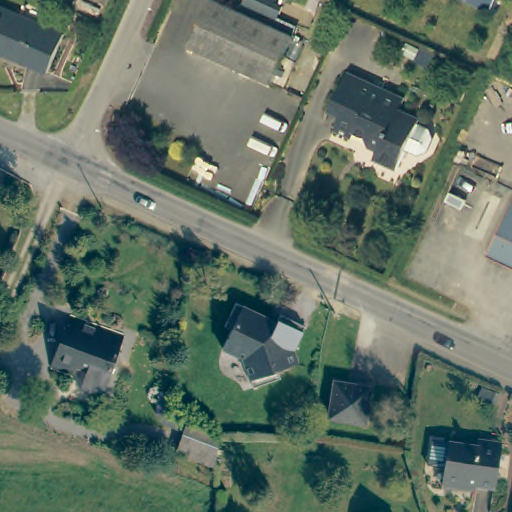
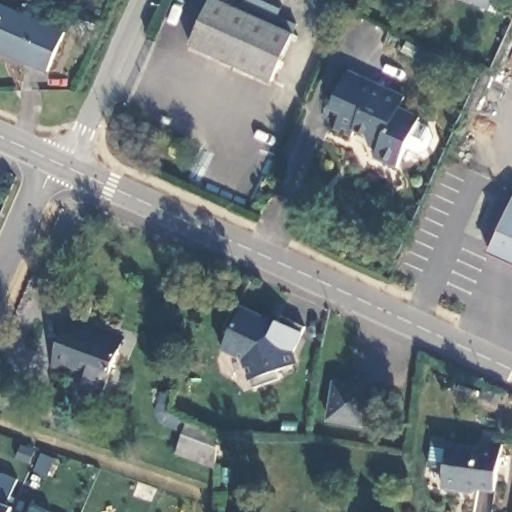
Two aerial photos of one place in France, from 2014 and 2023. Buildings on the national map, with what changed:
unchanged [(293,34),(272,82),(189,45),(209,0),(218,0),(293,34)]
unchanged [(471,1),(469,0),(472,0),(471,1)]
unchanged [(48,66),(0,47),(0,4),(63,28),(48,66)]
unchanged [(379,157),(382,150),(378,138),(360,130),(356,137),(339,129),(347,111),(337,106),(353,71),(410,97),(404,108),(425,117),(402,167),(379,157)]
unchanged [(512,224),(512,258),(499,252),(512,224)]
unchanged [(275,319),(279,311),(304,322),(291,351),(294,360),(277,366),(280,375),(253,384),(242,355),(222,345),(231,326),(224,323),(235,300),(267,315),(275,319)]
unchanged [(128,336),(103,398),(86,391),(93,371),(80,366),(78,371),(57,363),(74,315),(128,336)]
unchanged [(371,387),(365,426),(327,420),(333,381),(371,387)]
unchanged [(497,405),(478,399),(482,388),(501,395),(497,405)]
unchanged [(174,450),(190,406),(192,407),(200,410),(208,414),(213,424),(210,465),(174,450)]
unchanged [(501,444),(494,492),(468,488),(464,492),(442,488),(448,444),(477,448),(478,441),(501,444)]
new [(0,512),(0,481),(3,472),(17,480),(7,505),(13,508),(11,512),(0,512)]
new [(31,512),(33,506),(46,512),(31,512)]

